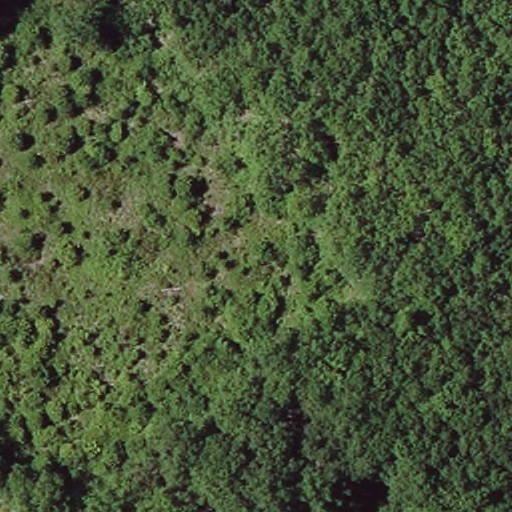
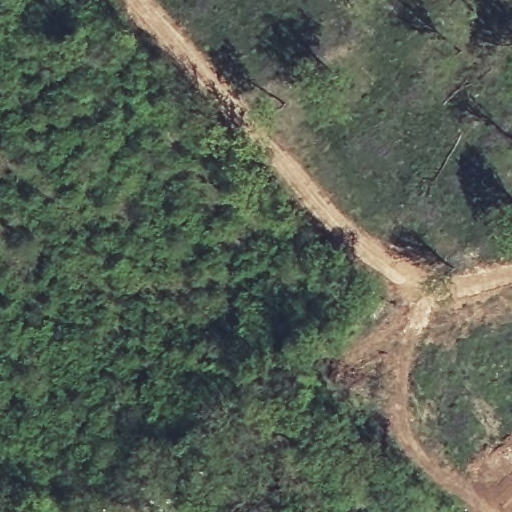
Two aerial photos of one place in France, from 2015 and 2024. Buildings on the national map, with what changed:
[]

